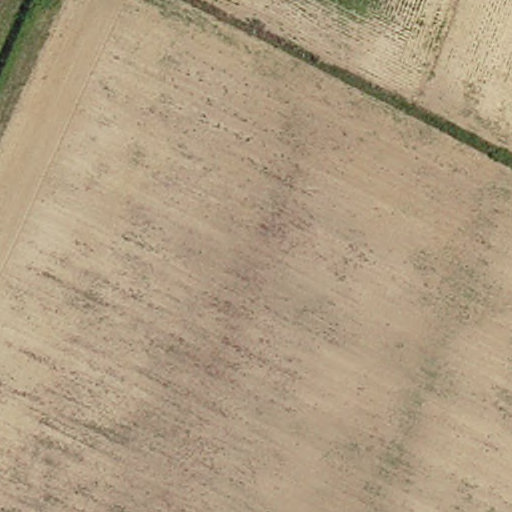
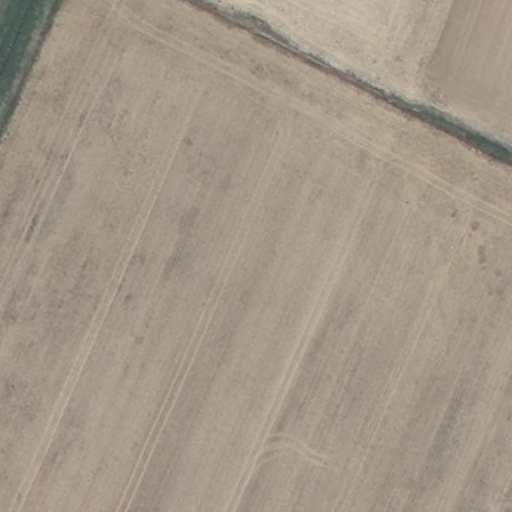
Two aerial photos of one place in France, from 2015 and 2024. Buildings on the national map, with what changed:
[]

